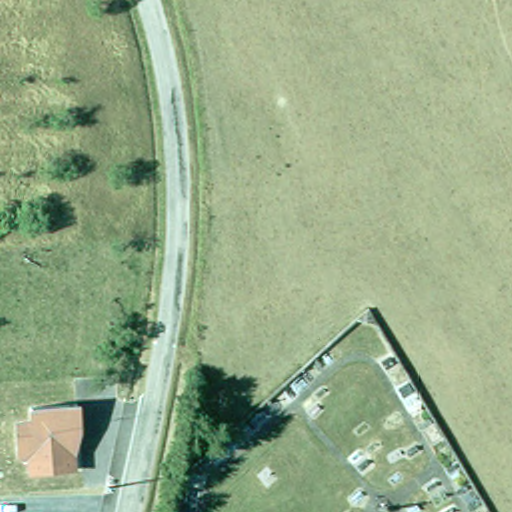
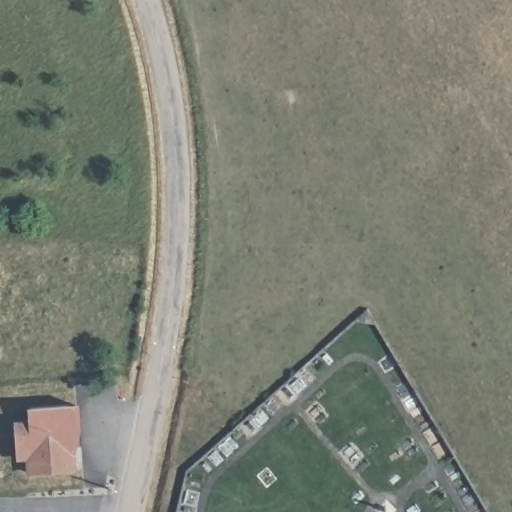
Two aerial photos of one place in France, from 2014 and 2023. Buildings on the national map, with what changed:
unchanged [(15,420),(30,419),(26,406),(79,402),(81,425),(86,427),(75,455),(76,471),(28,475),(27,458),(18,459),(15,420)]

